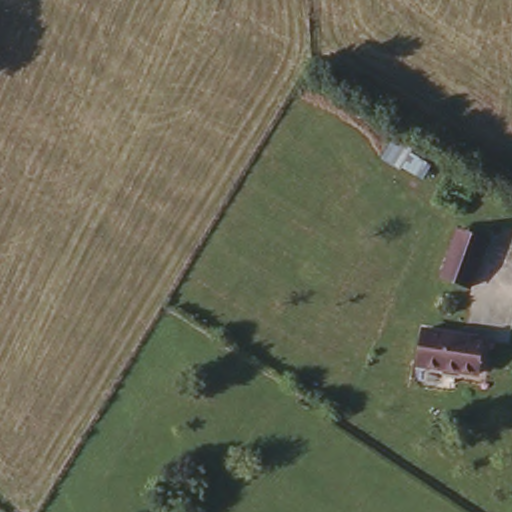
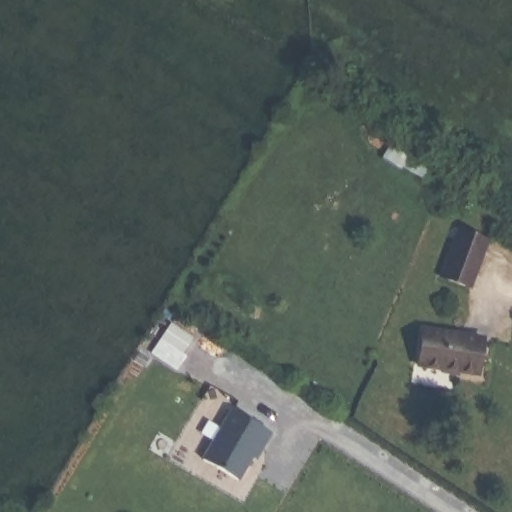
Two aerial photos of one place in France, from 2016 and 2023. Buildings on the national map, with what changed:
unchanged [(465,290),(437,280),(453,228),(486,241),(465,290)]
unchanged [(483,332),(478,369),(420,360),(425,324),(483,332)]
new [(232,404),(271,428),(256,453),(251,449),(236,473),(202,453),(232,404)]

